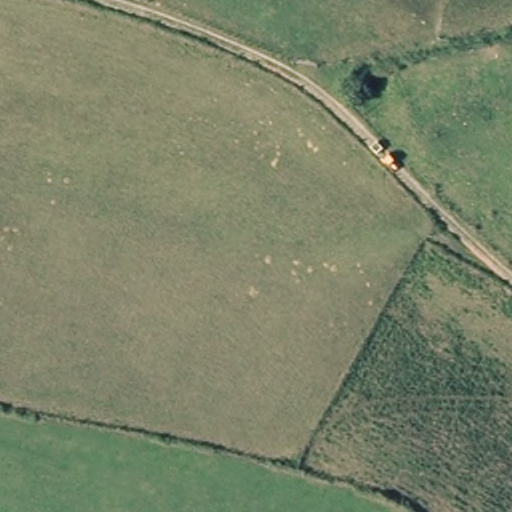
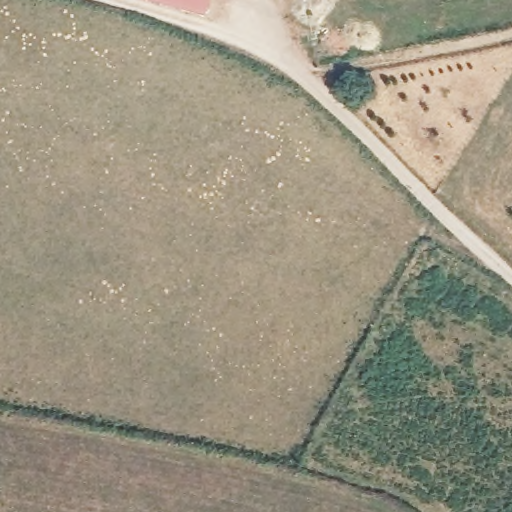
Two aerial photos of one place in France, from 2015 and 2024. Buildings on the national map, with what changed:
new [(205,13),(155,0),(208,0),(205,13)]

